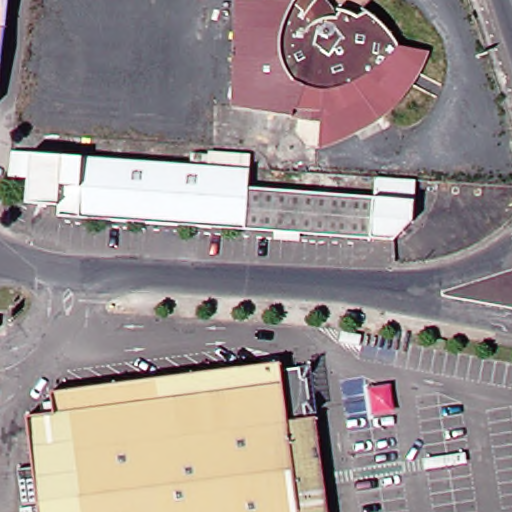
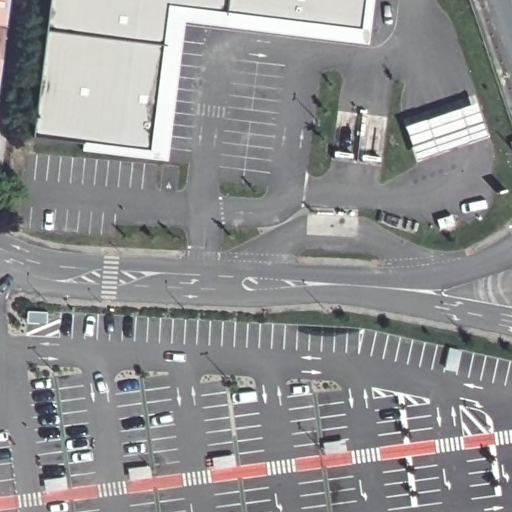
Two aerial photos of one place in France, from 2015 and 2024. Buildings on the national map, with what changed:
unchanged [(0,84),(0,0),(10,0),(0,84)]
new [(51,0),(373,0),(369,44),(185,21),(168,159),(82,151),(84,142),(34,135),(51,0)]
demolished [(400,101),(395,107),(390,112),(387,115),(373,97),(355,107),(358,115),(362,116),(364,129),(355,135),(345,139),(335,142),(326,145),(328,107),(290,107),(280,119),(230,112),(239,0),(254,0),(298,3),(301,0),(324,0),(341,15),(343,12),(347,5),(353,7),(359,9),(364,12),(365,12),(373,8),(387,18),(396,30),(404,42),(405,44),(430,51),(423,65),(415,79),(406,92),(400,101)]
new [(479,102),(490,136),(417,158),(407,126),(479,102)]
demolished [(68,156),(89,157),(218,167),(232,169),(257,171),(256,187),(275,189),(273,232),(84,218),(63,216),(64,206),(31,203),(33,178),(35,153),(68,156)]
demolished [(380,197),(422,200),(420,221),(400,241),(377,240),(273,232),(275,189),(380,197)]
demolished [(30,504),(25,469),(40,466),(32,411),(49,408),(48,401),(58,400),(56,390),(129,381),(201,372),(274,361),(288,359),(289,367),(306,365),(312,413),(324,412),(327,434),(338,512),(45,512),(44,502),(30,504)]

